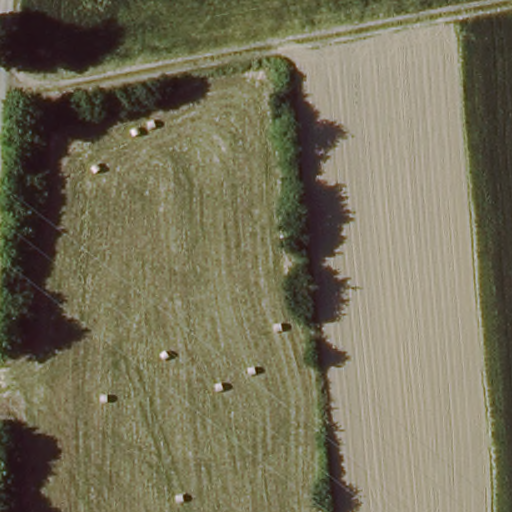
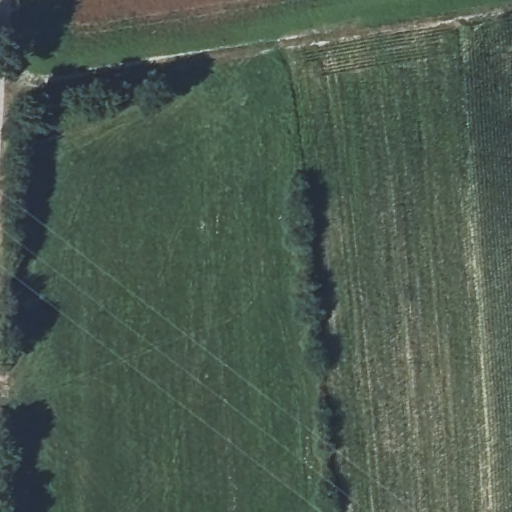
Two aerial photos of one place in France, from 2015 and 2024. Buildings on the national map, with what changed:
[]

